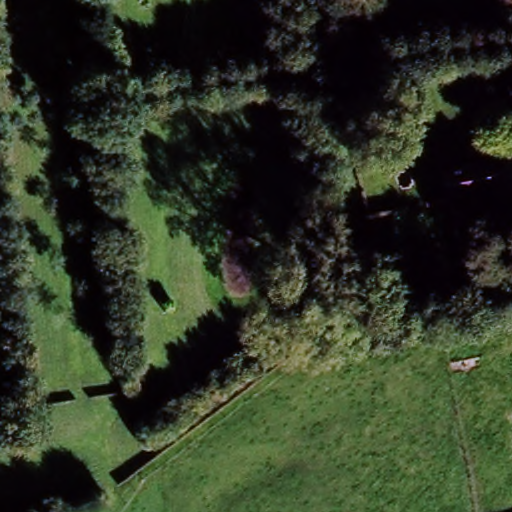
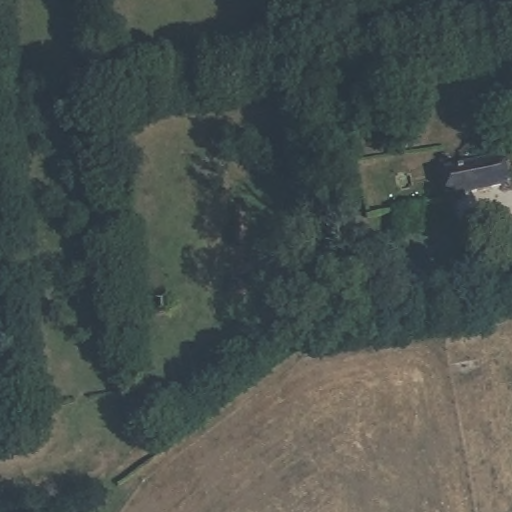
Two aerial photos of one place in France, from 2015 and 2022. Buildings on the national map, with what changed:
unchanged [(501,152),(507,176),(456,187),(451,163),(501,152)]

